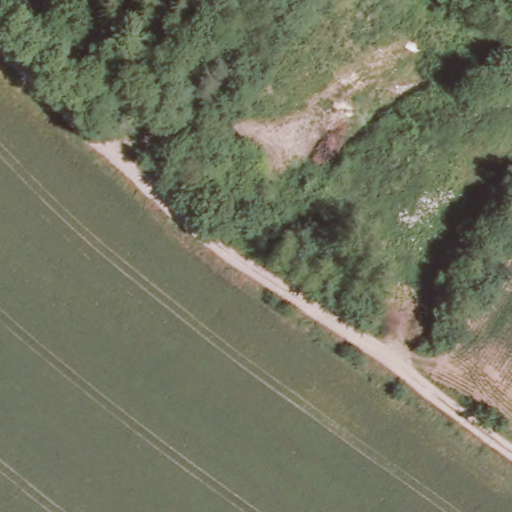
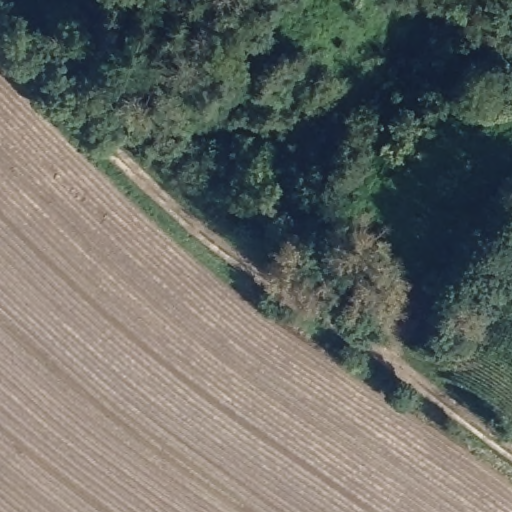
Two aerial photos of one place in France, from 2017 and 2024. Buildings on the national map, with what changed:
unchanged [(425,512),(403,512),(402,512),(410,502),(425,512)]

